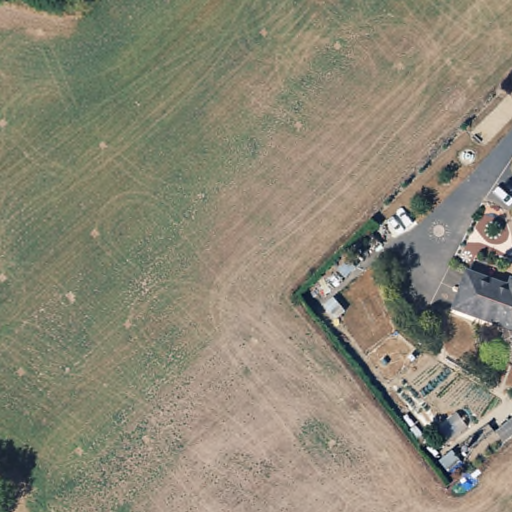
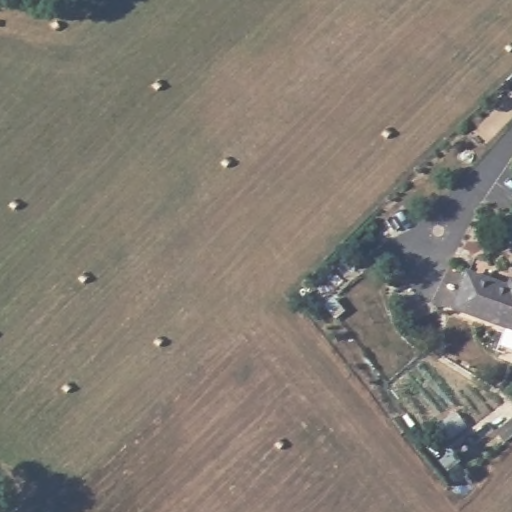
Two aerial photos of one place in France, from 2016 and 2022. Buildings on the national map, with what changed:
unchanged [(512,351),(500,346),(506,329),(455,312),(467,269),(512,282),(512,351)]

